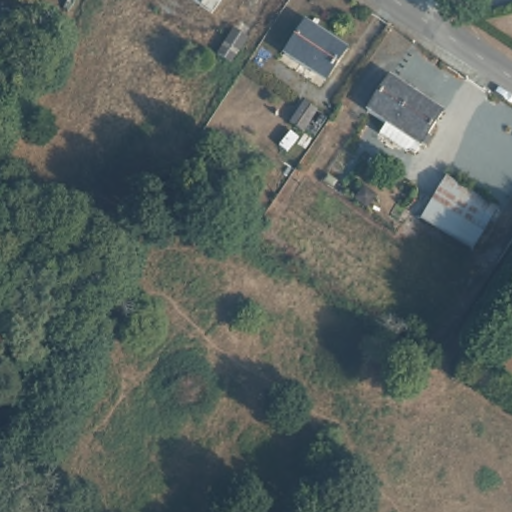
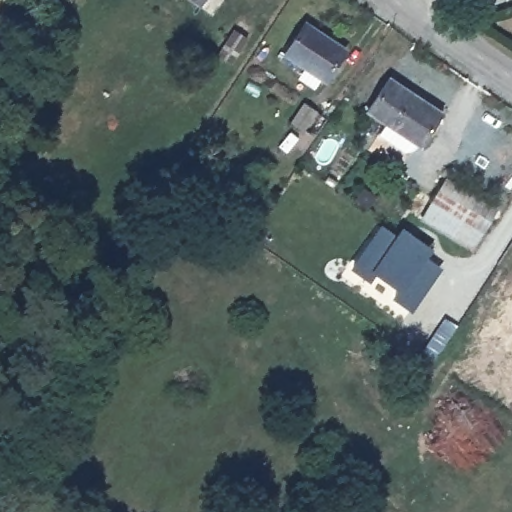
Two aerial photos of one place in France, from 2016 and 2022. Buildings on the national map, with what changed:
unchanged [(191,0),(222,0),(213,13),(191,0)]
unchanged [(306,70),(311,63),(289,49),(309,18),(345,40),(325,72),(320,69),(313,76),(306,70)]
unchanged [(247,36),(231,61),(217,51),(233,28),(247,36)]
unchanged [(411,135),(360,102),(384,69),(433,102),(411,135)]
unchanged [(317,112),(305,132),(292,125),(305,105),(317,112)]
unchanged [(444,175),(496,207),(471,249),(419,219),(444,175)]
new [(381,223),(396,233),(403,225),(433,247),(428,256),(443,267),(411,311),(391,296),(398,289),(377,273),(370,281),(350,268),(381,223)]

